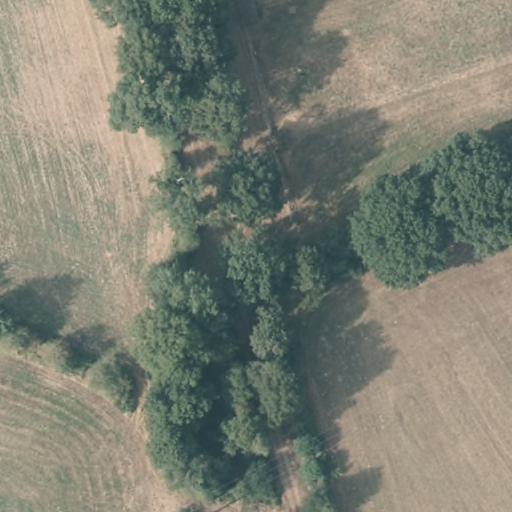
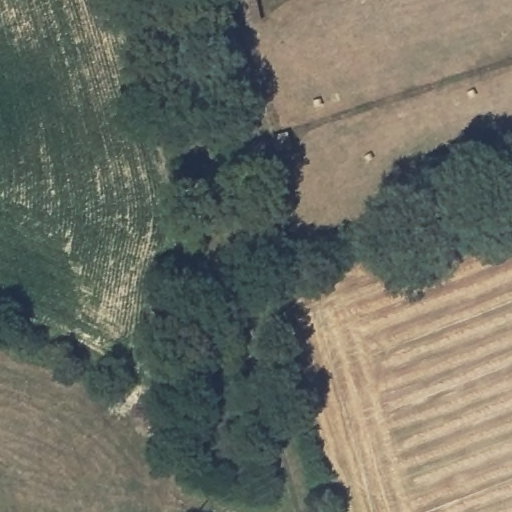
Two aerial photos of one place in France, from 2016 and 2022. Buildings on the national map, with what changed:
unchanged [(238,0),(256,0),(260,23),(245,26),(238,0)]
unchanged [(275,152),(272,137),(288,133),(291,148),(275,152)]

